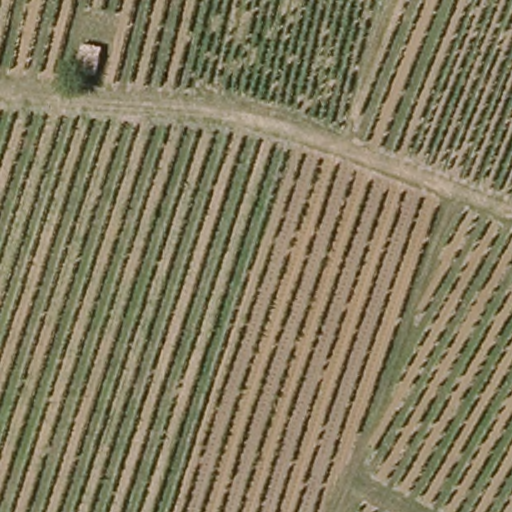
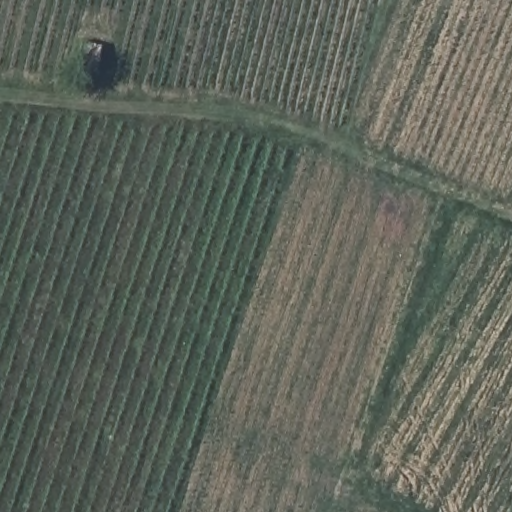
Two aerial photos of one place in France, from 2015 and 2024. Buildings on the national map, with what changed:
unchanged [(100,43),(95,71),(78,69),(84,40),(100,43)]

